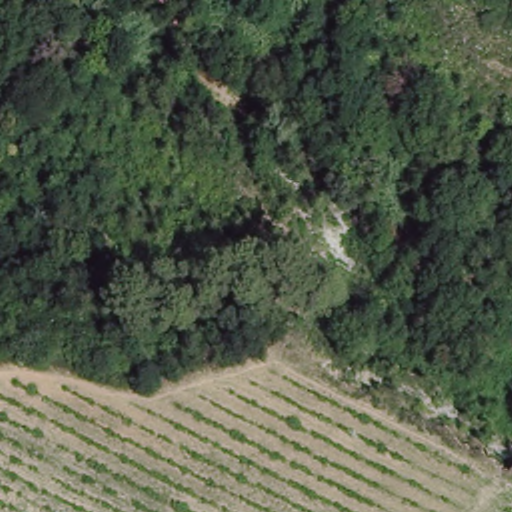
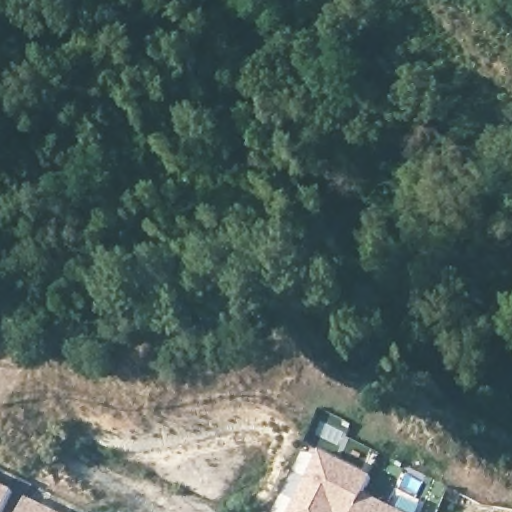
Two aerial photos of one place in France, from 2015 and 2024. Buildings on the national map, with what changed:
unchanged [(97,215),(108,225),(97,235),(85,225),(97,215)]
new [(373,477),(365,493),(402,512),(291,512),(321,451),(373,477)]
new [(0,512),(0,485),(13,492),(3,512),(0,512)]
new [(55,512),(21,512),(27,498),(55,512)]

